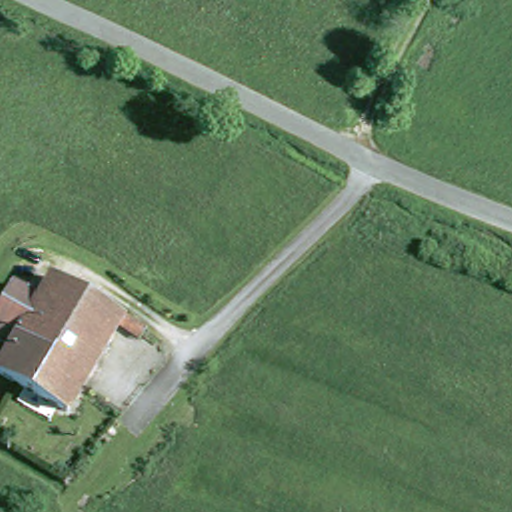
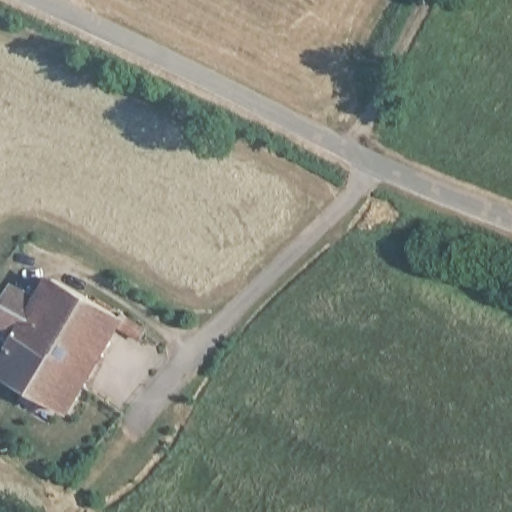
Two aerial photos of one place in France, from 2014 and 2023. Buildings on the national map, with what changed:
unchanged [(0,341),(0,308),(16,285),(42,298),(55,277),(126,322),(64,416),(0,375),(0,358),(7,346),(0,341)]

